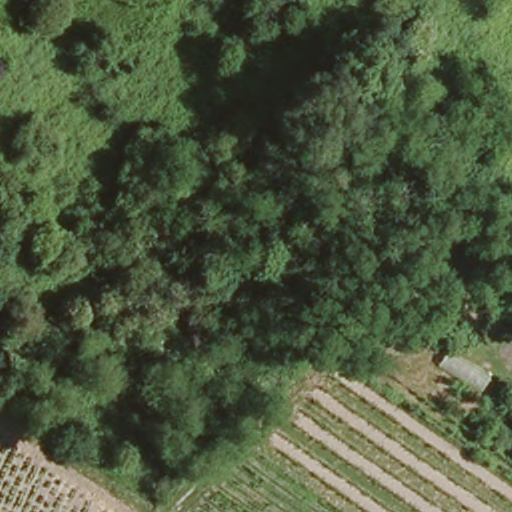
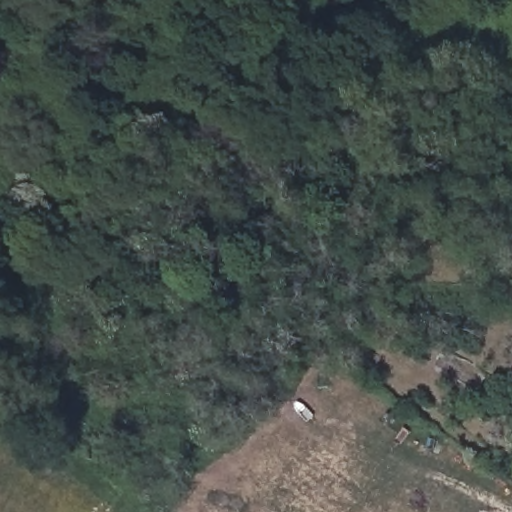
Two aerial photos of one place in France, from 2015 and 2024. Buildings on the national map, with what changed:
[]

